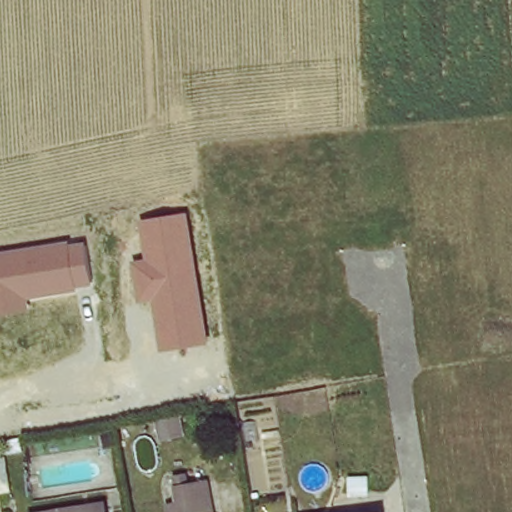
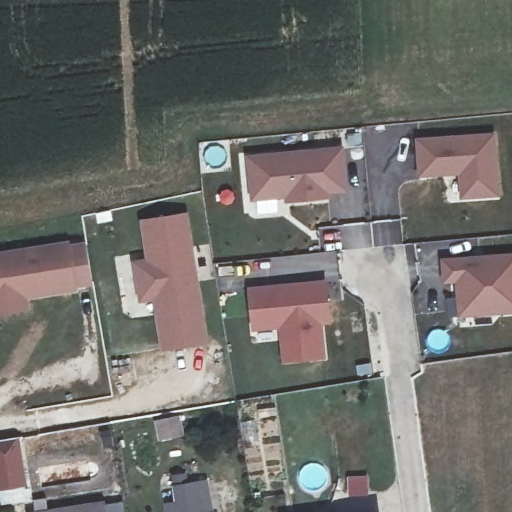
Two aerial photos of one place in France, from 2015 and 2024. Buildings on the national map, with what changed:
new [(457,175),(418,176),(416,138),(494,133),(500,195),(460,198),(457,175)]
new [(339,151),(343,190),(326,192),(326,197),(286,201),(285,193),(278,194),(278,198),(251,199),(247,159),(339,151)]
unchanged [(189,213),(210,344),(162,351),(152,301),(141,303),(135,261),(147,260),(143,220),(189,213)]
unchanged [(71,240),(71,243),(84,241),(91,285),(75,288),(76,290),(30,299),(30,309),(0,314),(0,251),(71,240)]
new [(512,310),(460,314),(459,280),(445,280),(445,262),(512,258),(512,310)]
new [(323,284),(327,322),(319,323),(321,357),(284,360),(281,325),(252,327),(250,290),(323,284)]
new [(20,437),(28,489),(0,493),(0,440),(20,437)]
unchanged [(217,512),(175,512),(175,509),(186,507),(181,481),(215,476),(217,512)]
unchanged [(28,510),(105,498),(107,512),(29,512),(28,510)]

